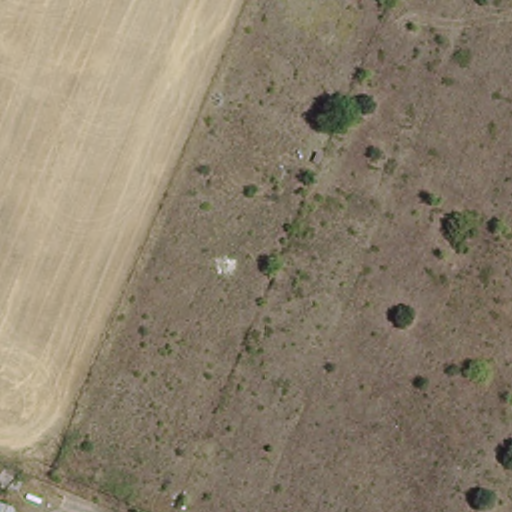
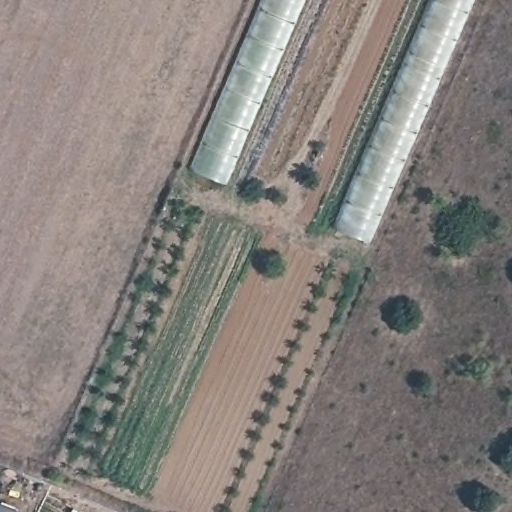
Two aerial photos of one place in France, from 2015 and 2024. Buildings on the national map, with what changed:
new [(260,0),(302,0),(223,184),(191,169),(260,0)]
new [(388,93),(419,24),(431,0),(474,0),(430,105),(369,243),(333,227),(388,93)]

